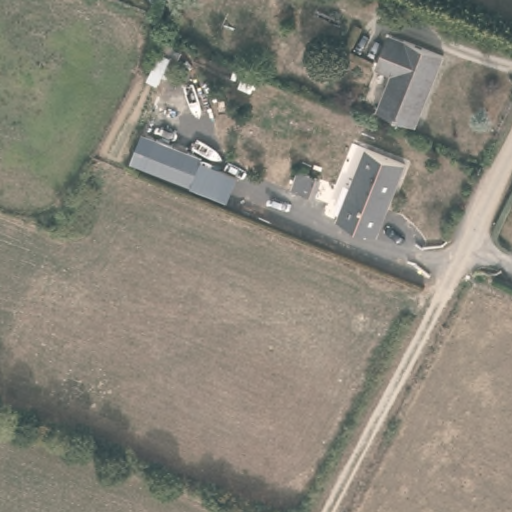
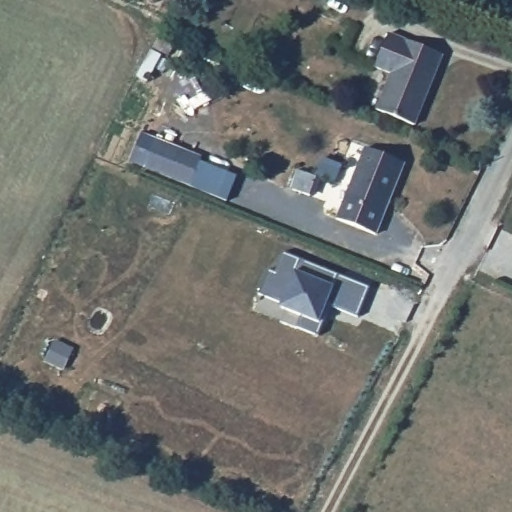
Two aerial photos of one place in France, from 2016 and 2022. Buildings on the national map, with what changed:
unchanged [(390,74),(380,69),(394,34),(448,55),(417,128),(376,112),(390,74)]
unchanged [(200,157),(192,186),(130,163),(138,135),(200,157)]
unchanged [(366,150),(404,165),(375,237),(336,222),(366,150)]
new [(269,270),(276,273),(285,251),(371,286),(359,316),(330,304),(318,335),(298,327),(303,316),(280,307),(282,301),(260,293),(269,270)]

